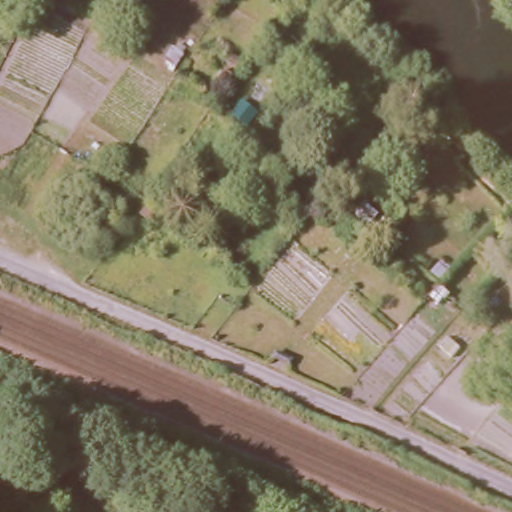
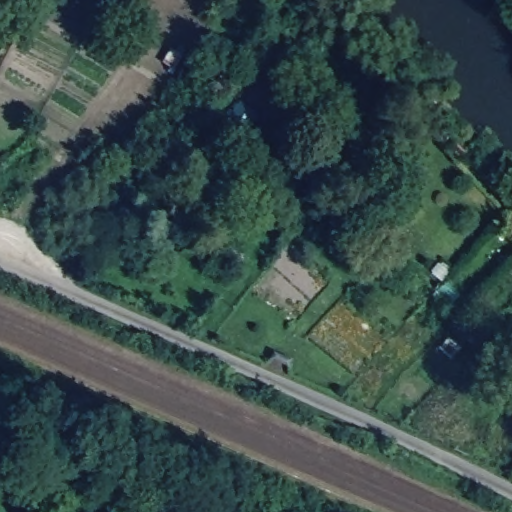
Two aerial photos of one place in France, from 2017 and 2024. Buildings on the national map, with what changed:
unchanged [(33,3),(30,11),(22,7),(25,0),(27,0),(33,3)]
unchanged [(240,104),(256,115),(246,130),(231,119),(240,104)]
unchanged [(159,216),(154,223),(144,216),(149,208),(159,216)]

